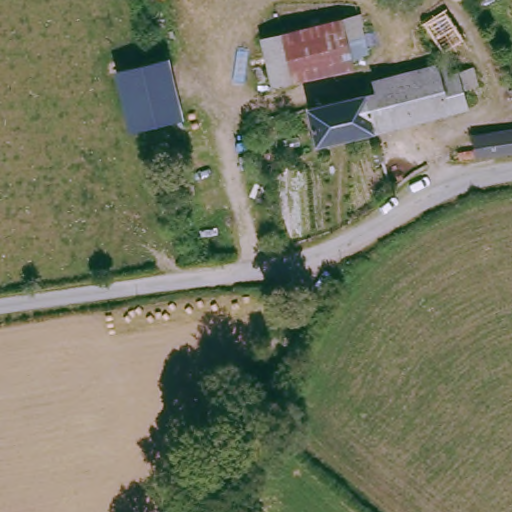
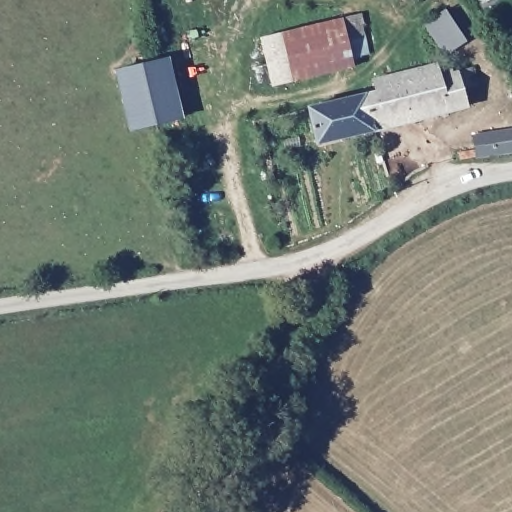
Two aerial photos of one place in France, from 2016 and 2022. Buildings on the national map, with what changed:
unchanged [(463,34),(438,47),(424,23),(449,10),(463,34)]
unchanged [(347,12),(362,58),(304,75),(291,30),(347,12)]
unchanged [(304,75),(281,81),(266,37),(291,30),(304,75)]
unchanged [(448,68),(470,64),(474,84),(462,86),(464,104),(315,139),(306,103),(406,79),(404,66),(444,57),(448,68)]
unchanged [(144,64),(166,58),(183,116),(157,123),(132,130),(116,72),(144,64)]
unchanged [(474,154),(473,136),(512,129),(512,149),(474,154)]

